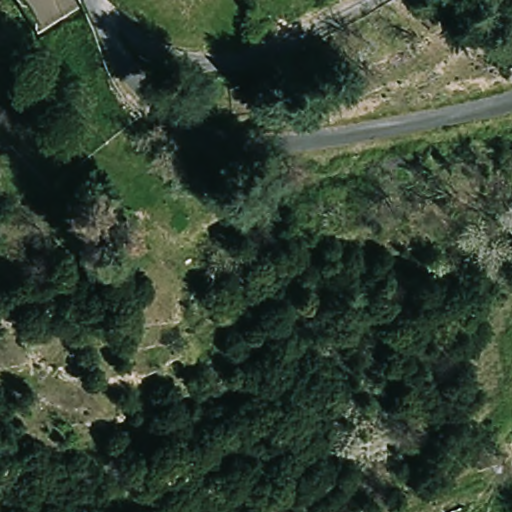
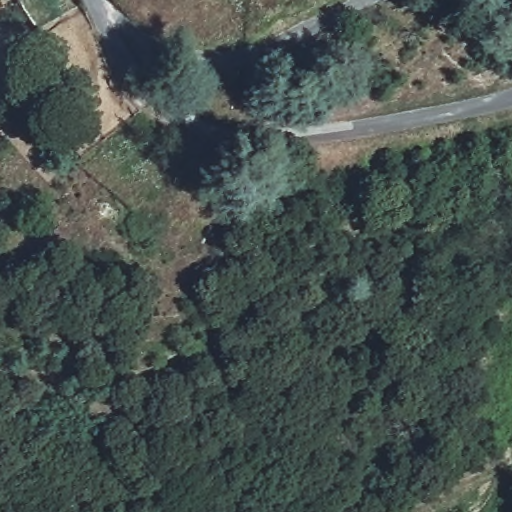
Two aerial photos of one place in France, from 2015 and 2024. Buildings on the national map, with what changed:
unchanged [(205,149),(218,190),(198,192),(188,152),(205,149)]

